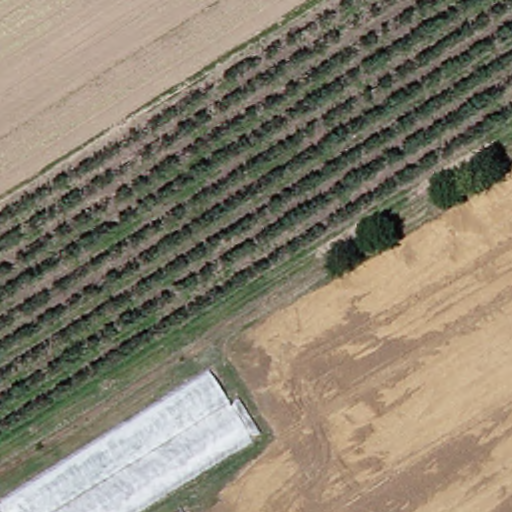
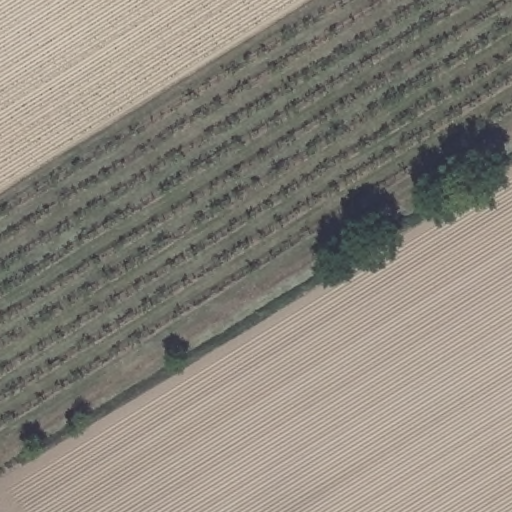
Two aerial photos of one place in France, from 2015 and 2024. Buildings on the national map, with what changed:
demolished [(254,436),(130,512),(3,512),(0,506),(210,371),(254,436)]
demolished [(188,508),(191,512),(181,512),(188,508)]

